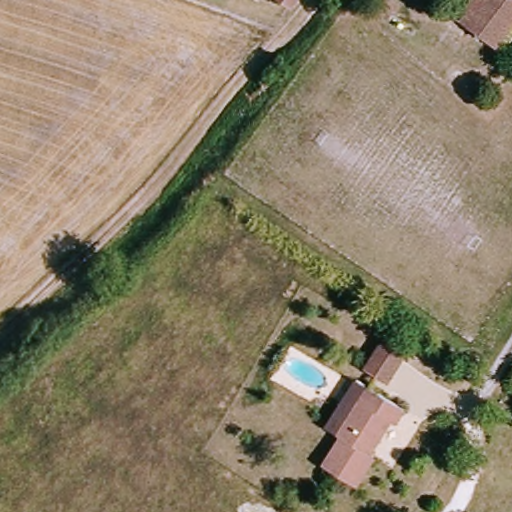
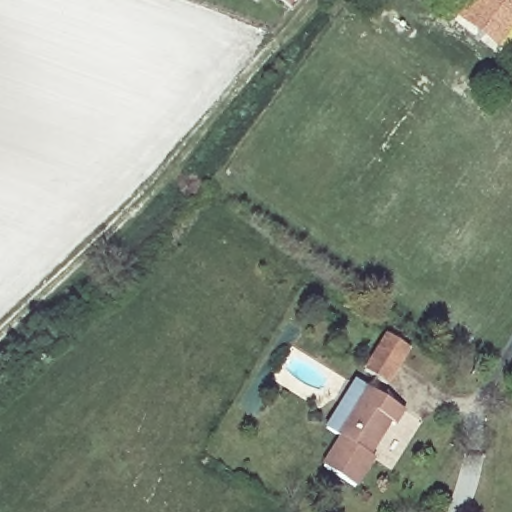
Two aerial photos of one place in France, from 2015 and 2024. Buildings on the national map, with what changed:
unchanged [(281,0),(295,0),(292,6),(281,0)]
unchanged [(502,42),(470,17),(463,13),(469,6),(473,0),(512,0),(512,29),(507,35),(502,42)]
unchanged [(384,338),(404,350),(384,384),(364,371),(384,338)]
unchanged [(380,457),(359,490),(328,468),(346,440),(332,429),(361,381),(410,411),(400,428),(394,425),(375,454),(380,457)]

